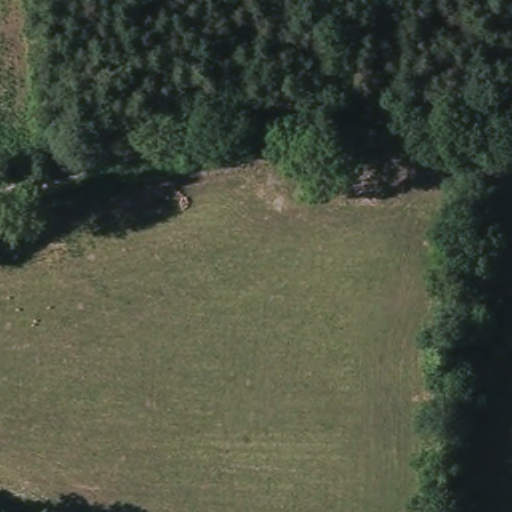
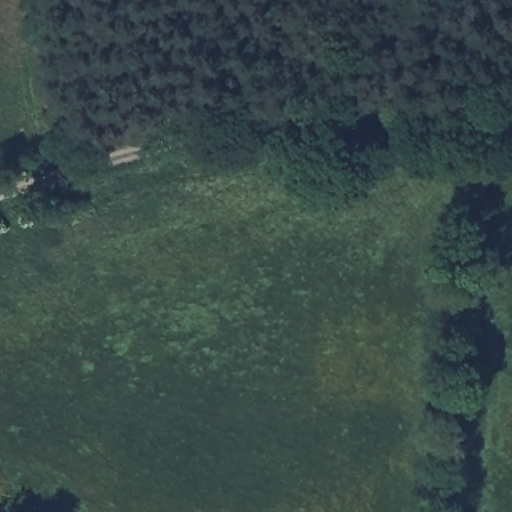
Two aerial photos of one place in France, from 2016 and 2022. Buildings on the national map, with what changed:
[]

